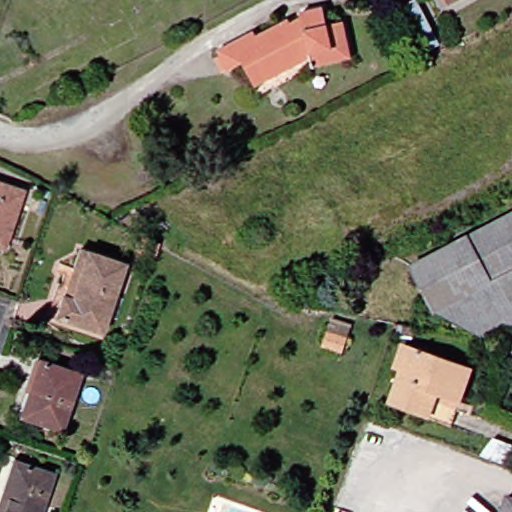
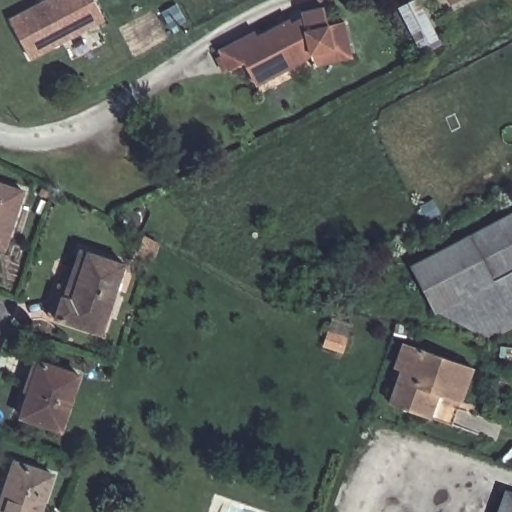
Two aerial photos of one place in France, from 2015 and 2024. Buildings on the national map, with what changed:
new [(93,0),(104,22),(28,60),(10,21),(52,0),(93,0)]
unchanged [(429,53),(406,9),(423,0),(425,0),(447,44),(429,53)]
unchanged [(446,0),(453,0),(447,3),(446,0)]
unchanged [(317,70),(314,61),(259,88),(246,66),(231,73),(221,53),(255,36),(258,41),(290,24),(294,31),(306,26),(304,16),(326,10),(330,28),(345,24),(351,48),(354,60),(317,70)]
unchanged [(20,192),(0,248),(0,184),(20,192)]
unchanged [(471,243),(512,220),(512,274),(494,284),(440,314),(417,272),(471,243)]
unchanged [(152,255),(138,250),(142,239),(155,246),(152,255)]
unchanged [(103,329),(50,311),(60,279),(69,282),(82,246),(127,261),(103,329)]
unchanged [(512,274),(512,334),(496,343),(440,314),(494,284),(512,274)]
unchanged [(347,338),(343,351),(321,344),(325,331),(347,338)]
unchanged [(429,415),(398,404),(409,371),(401,369),(407,349),(416,352),(475,373),(463,407),(456,425),(429,415)]
unchanged [(66,431),(29,418),(33,406),(27,404),(42,362),(51,365),(85,376),(66,431)]
unchanged [(42,512),(1,512),(11,479),(14,480),(20,465),(50,474),(45,491),(49,492),(42,512)]
unchanged [(57,491),(62,475),(73,479),(67,495),(57,491)]
unchanged [(512,508),(512,512),(511,512),(512,508)]

